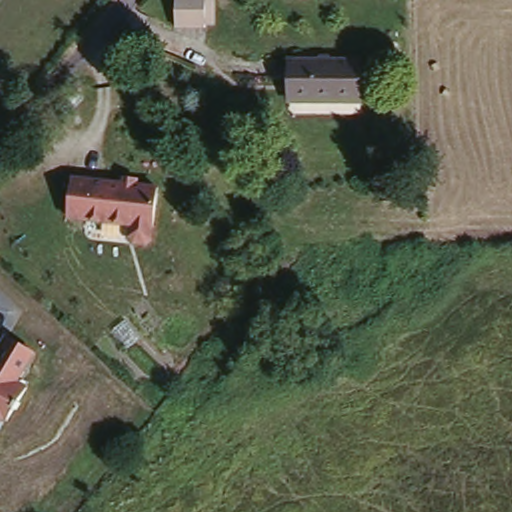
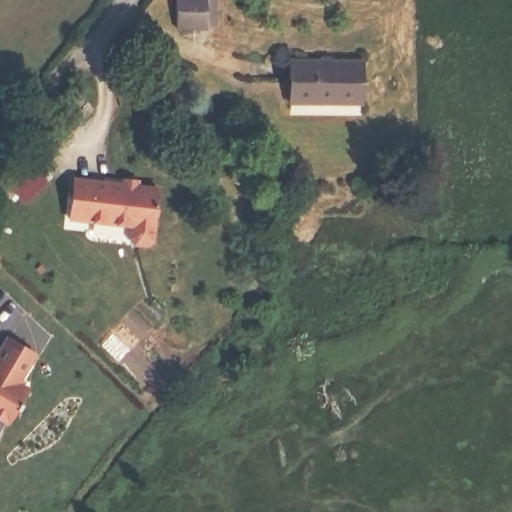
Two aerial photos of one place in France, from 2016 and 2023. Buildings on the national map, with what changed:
unchanged [(207,0),(206,24),(169,23),(168,0),(207,0)]
unchanged [(286,83),(287,65),(360,65),(360,104),(302,105),(289,104),(286,83)]
unchanged [(125,184),(125,177),(141,178),(141,186),(160,188),(155,246),(133,243),(133,229),(71,222),(75,178),(125,184)]
unchanged [(6,341),(38,354),(21,383),(27,388),(6,424),(0,419),(0,354),(6,341)]

